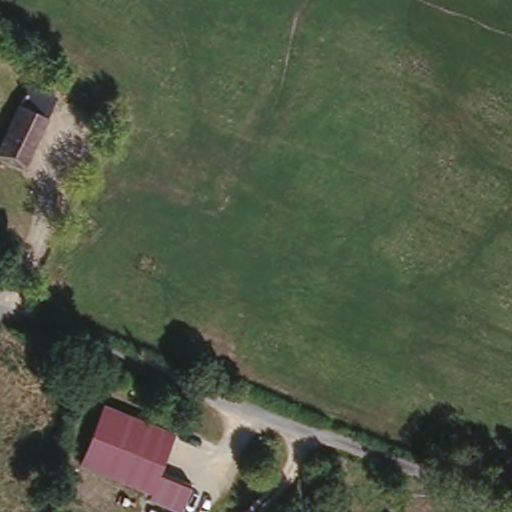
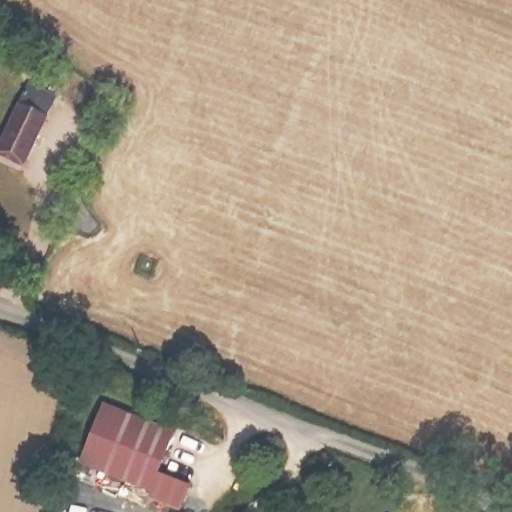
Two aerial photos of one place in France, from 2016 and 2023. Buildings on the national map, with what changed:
unchanged [(57,94),(28,169),(2,158),(29,82),(57,94)]
unchanged [(173,431),(161,468),(195,481),(184,512),(150,498),(154,489),(79,461),(100,402),(173,431)]

